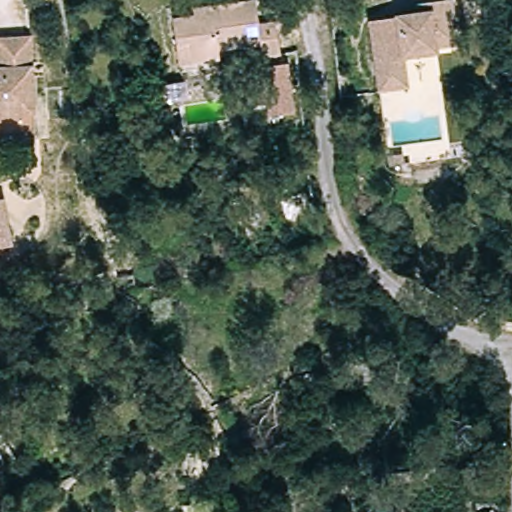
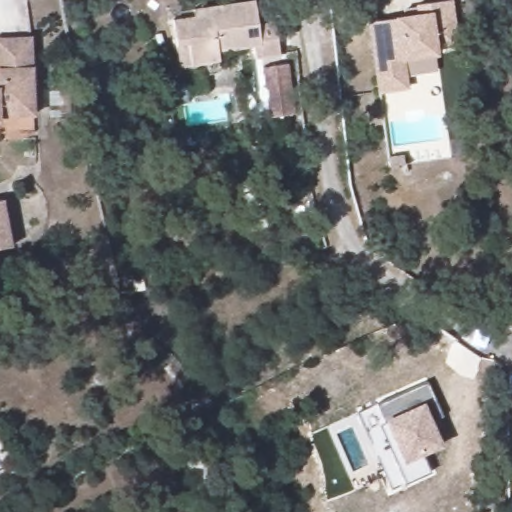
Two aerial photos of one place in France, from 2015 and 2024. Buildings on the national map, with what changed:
unchanged [(184,16),(182,4),(205,0),(248,0),(251,20),(269,17),(274,51),(257,55),(255,43),(210,50),(213,65),(178,70),(170,19),(184,16)]
unchanged [(425,11),(424,1),(435,0),(446,0),(452,46),(431,50),(432,55),(399,60),(402,89),(370,92),(360,21),(425,11)]
unchanged [(30,118),(0,119),(0,39),(28,39),(30,118)]
unchanged [(283,60),(290,110),(266,114),(258,64),(283,60)]
unchanged [(0,248),(0,196),(7,246),(0,248)]
new [(377,424),(382,422),(375,403),(427,382),(440,418),(432,421),(441,450),(422,458),(428,475),(403,485),(377,424)]
unchanged [(209,430),(220,473),(207,476),(196,433),(209,430)]

